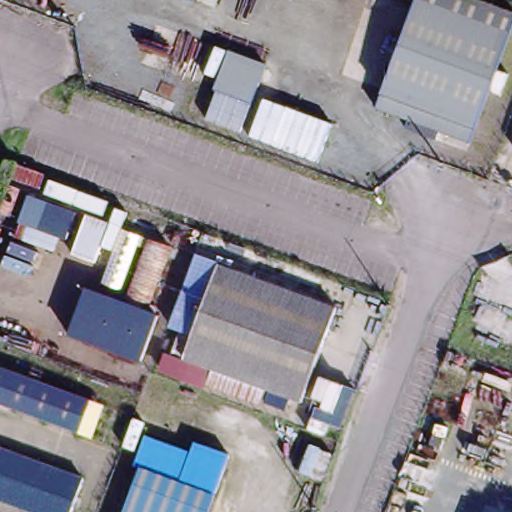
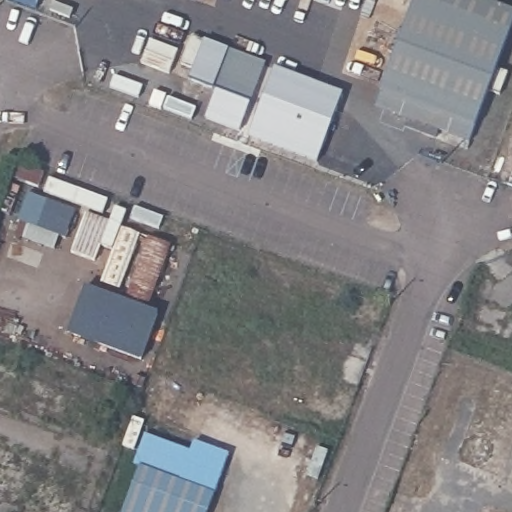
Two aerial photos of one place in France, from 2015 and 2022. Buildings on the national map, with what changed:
unchanged [(212,0),(211,1),(208,0),(212,0)]
unchanged [(470,141),(376,107),(415,0),(432,0),(510,27),(470,141)]
demolished [(221,85),(237,47),(272,61),(257,99),(221,85)]
new [(271,63),(341,90),(330,122),(292,107),(257,93),(271,63)]
unchanged [(241,132),(257,93),(292,107),(277,146),(241,132)]
unchanged [(337,125),(322,165),(276,148),(277,146),(292,107),(337,125)]
unchanged [(13,219),(22,195),(72,213),(64,237),(58,252),(18,238),(24,223),(13,219)]
unchanged [(117,255),(107,252),(104,263),(85,257),(72,252),(86,218),(99,223),(115,229),(115,230),(125,234),(126,231),(146,239),(126,292),(107,285),(117,255)]
unchanged [(151,237),(175,245),(154,303),(130,295),(151,237)]
demolished [(181,353),(215,260),(335,303),(302,396),(181,353)]
unchanged [(145,362),(70,334),(88,289),(162,316),(145,362)]
demolished [(293,412),(164,370),(170,351),(180,357),(298,399),(293,412)]
demolished [(0,402),(0,368),(87,399),(77,429),(0,402)]
demolished [(361,388),(348,427),(316,414),(330,375),(361,388)]
unchanged [(142,461),(150,435),(195,452),(198,438),(229,449),(215,491),(142,461)]
demolished [(82,479),(71,512),(37,512),(0,499),(0,450),(82,479)]
unchanged [(209,512),(122,512),(141,464),(216,494),(209,512)]

